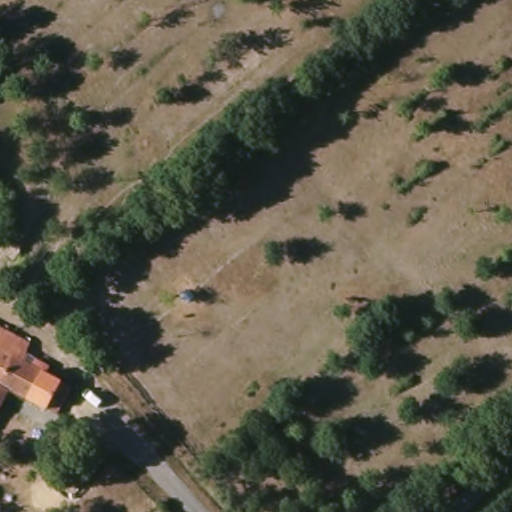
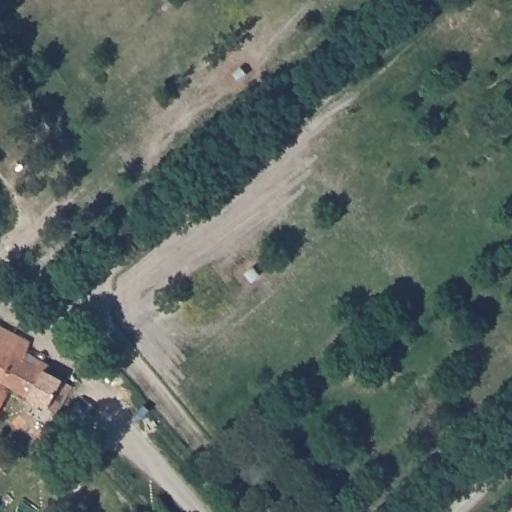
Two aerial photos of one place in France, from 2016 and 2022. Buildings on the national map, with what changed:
unchanged [(27,355),(50,366),(47,372),(72,386),(57,415),(10,389),(0,408),(0,327),(30,343),(27,355)]
unchanged [(102,460),(81,485),(60,466),(70,455),(71,456),(82,443),(102,460)]

